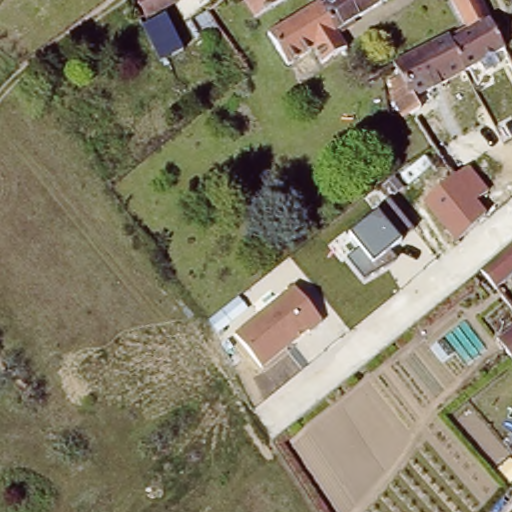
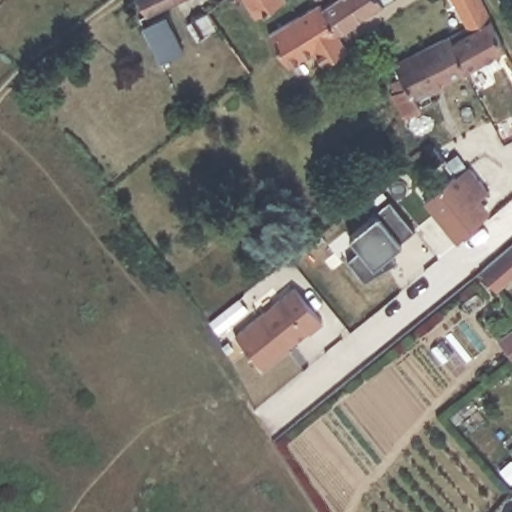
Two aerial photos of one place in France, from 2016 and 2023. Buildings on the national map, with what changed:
unchanged [(127,5),(134,0),(184,0),(138,22),(127,5)]
unchanged [(251,23),(237,0),(279,0),(280,3),(251,23)]
unchanged [(318,68),(310,56),(285,71),(265,40),(281,29),(298,19),(316,10),(315,9),(316,7),(327,0),(380,0),(331,33),(342,53),(340,54),(318,68)]
unchanged [(486,20),(467,31),(451,0),(475,0),(477,3),(486,20)]
unchanged [(165,15),(183,51),(157,62),(140,26),(165,15)]
unchanged [(420,114),(412,118),(405,121),(393,100),(400,96),(393,86),(401,81),(396,71),(395,69),(447,39),(449,41),(452,45),(488,23),(503,51),(495,56),(501,68),(487,76),(481,65),(415,103),(420,114)]
unchanged [(451,176),(470,166),(490,192),(476,200),(488,214),(456,242),(424,201),(451,176)]
unchanged [(415,231),(391,253),(399,261),(364,280),(347,259),(360,248),(348,234),(377,212),(374,209),(388,198),(415,231)]
unchanged [(512,275),(491,294),(476,276),(496,257),(512,244),(512,275)]
unchanged [(325,322),(311,333),(310,331),(261,368),(232,334),(293,289),(325,322)]
unchanged [(512,329),(512,366),(493,343),(512,329)]

